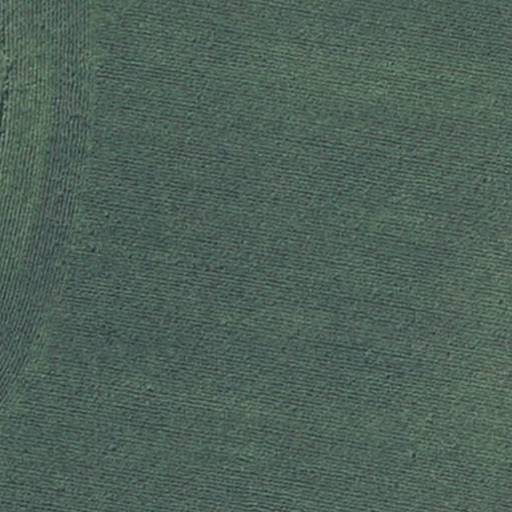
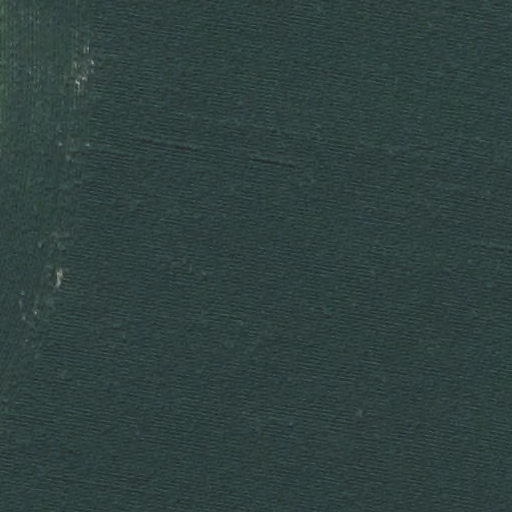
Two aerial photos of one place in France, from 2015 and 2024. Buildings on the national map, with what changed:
[]

